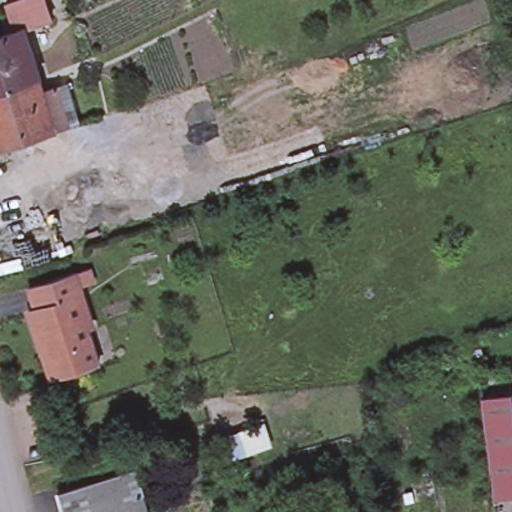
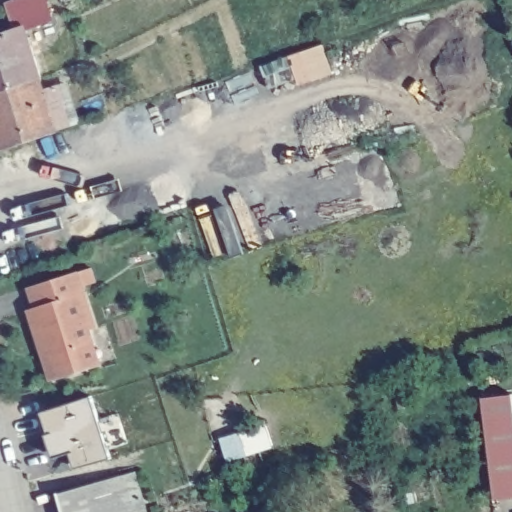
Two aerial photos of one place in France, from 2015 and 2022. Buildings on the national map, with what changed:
unchanged [(0,85),(0,51),(0,30),(5,29),(0,15),(0,0),(36,0),(42,20),(15,28),(20,44),(30,75),(33,86),(47,129),(0,144),(0,85)]
unchanged [(76,279),(82,300),(77,302),(97,371),(55,385),(47,355),(40,356),(28,316),(35,313),(30,293),(76,279)]
new [(90,395),(110,459),(73,470),(67,455),(55,457),(40,413),(90,395)]
unchanged [(498,495),(485,406),(512,402),(512,493),(498,495)]
unchanged [(63,512),(57,490),(135,469),(145,510),(146,512),(63,512)]

